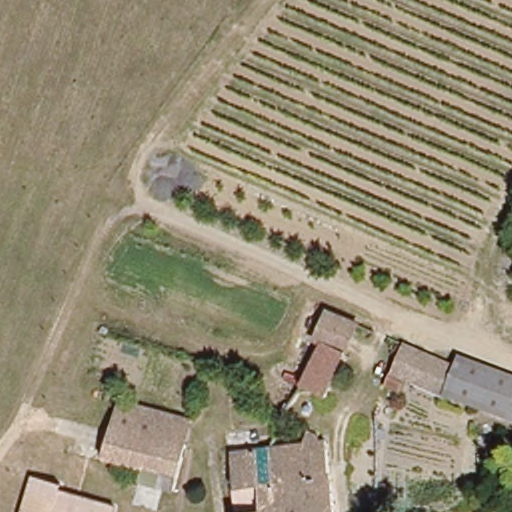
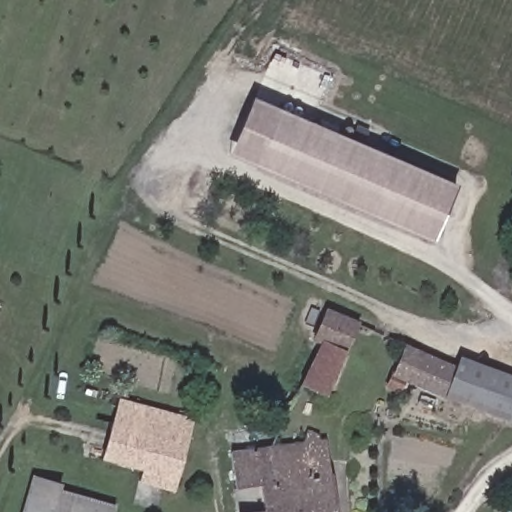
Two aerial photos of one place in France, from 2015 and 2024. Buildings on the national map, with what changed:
new [(433,243),(228,153),(253,97),(457,185),(433,243)]
unchanged [(324,301),(333,305),(357,316),(346,342),(319,332),(312,329),(324,301)]
unchanged [(319,332),(346,342),(327,390),(298,380),(319,332)]
unchanged [(457,353),(512,377),(512,401),(504,422),(403,383),(398,395),(381,386),(400,345),(450,363),(457,353)]
unchanged [(512,401),(512,425),(504,422),(512,401)]
unchanged [(184,446),(111,426),(119,402),(190,423),(184,446)]
unchanged [(171,492),(141,483),(143,469),(102,457),(111,426),(184,446),(171,492)]
unchanged [(320,435),(330,512),(286,512),(277,440),(320,435)]
unchanged [(260,442),(277,440),(286,512),(232,512),(223,447),(260,442)]
unchanged [(84,510),(84,512),(23,512),(28,494),(84,510)]

